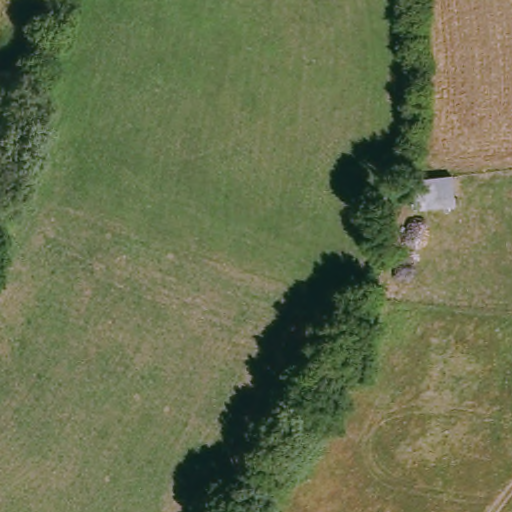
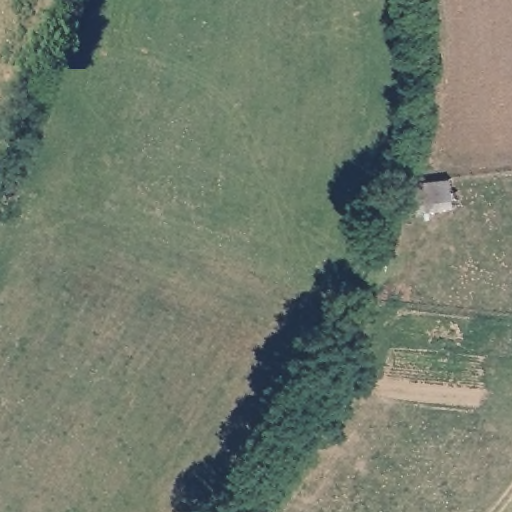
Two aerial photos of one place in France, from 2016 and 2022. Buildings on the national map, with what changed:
unchanged [(436,176),(452,175),(455,197),(427,200),(425,177),(436,176)]

